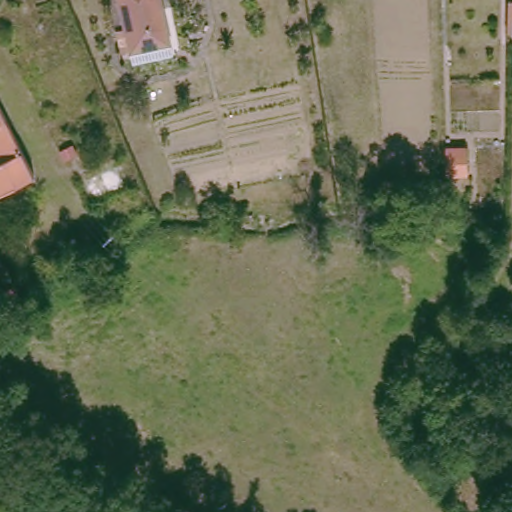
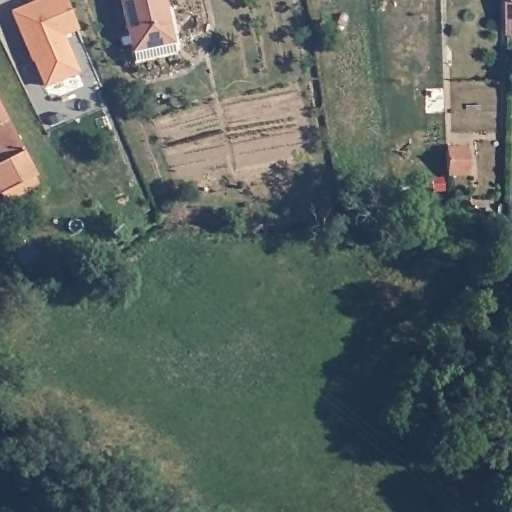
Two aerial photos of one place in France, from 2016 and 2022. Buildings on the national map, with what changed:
new [(78,72),(44,86),(12,12),(37,0),(65,0),(77,30),(64,35),(78,72)]
unchanged [(134,52),(124,0),(165,0),(174,44),(134,52)]
unchanged [(506,0),(512,0),(512,31),(506,31),(506,0)]
unchanged [(0,190),(0,112),(26,167),(30,176),(0,190)]
unchanged [(468,172),(448,173),(447,157),(447,147),(467,147),(468,172)]

